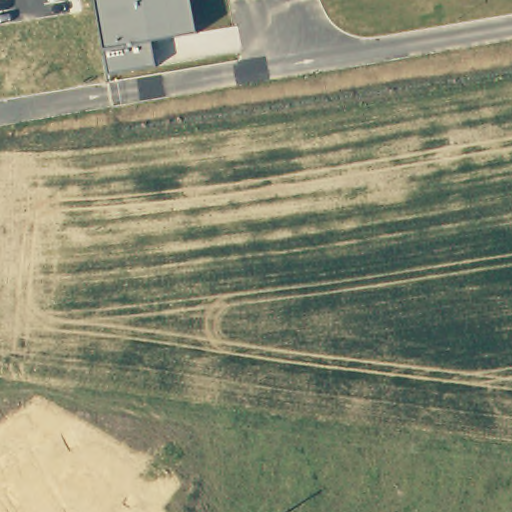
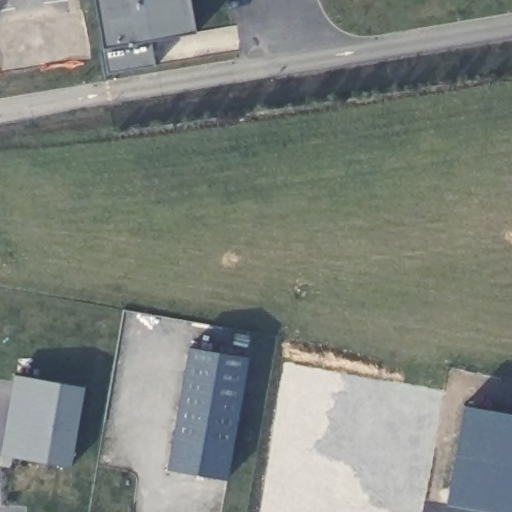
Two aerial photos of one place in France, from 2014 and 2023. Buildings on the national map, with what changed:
unchanged [(196,32),(151,40),(154,66),(107,72),(104,48),(97,0),(191,0),(196,32)]
new [(228,480),(168,470),(188,346),(249,357),(228,480)]
new [(71,468),(0,455),(14,375),(84,387),(71,468)]

